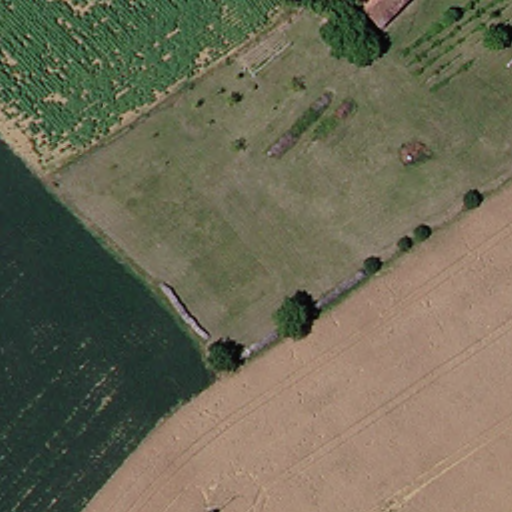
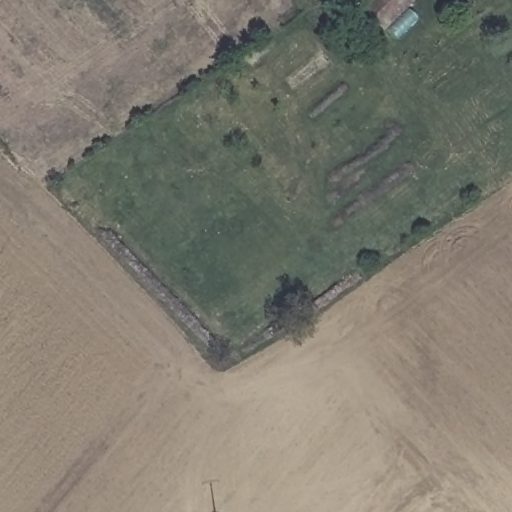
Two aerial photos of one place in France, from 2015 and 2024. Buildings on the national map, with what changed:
unchanged [(418,0),(423,7),(388,33),(369,8),(379,0),(418,0)]

